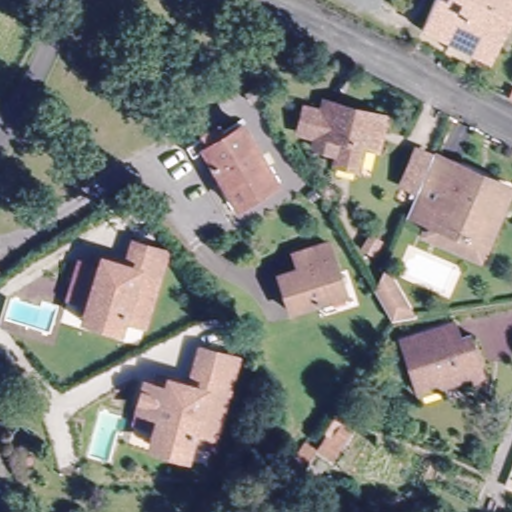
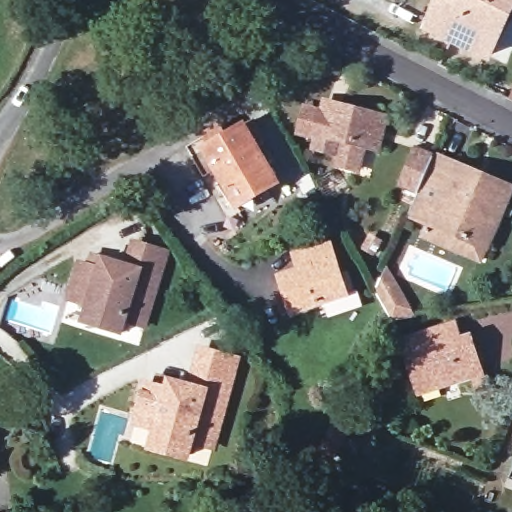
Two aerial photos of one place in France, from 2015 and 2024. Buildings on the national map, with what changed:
unchanged [(488,56),(423,26),(435,0),(479,0),(508,14),(488,56)]
unchanged [(479,0),(512,0),(512,4),(508,14),(479,0)]
unchanged [(512,84),(512,97),(505,94),(510,83),(512,84)]
unchanged [(361,147),(354,172),(332,166),(338,141),(314,136),(313,141),(294,136),(299,111),(333,119),(336,107),(380,118),(377,134),(372,151),(361,147)]
unchanged [(205,149),(246,126),(277,183),(237,205),(205,149)]
unchanged [(409,214),(421,186),(406,178),(419,150),(434,156),(454,166),(456,163),(512,187),(512,189),(488,248),(482,261),(424,237),(430,223),(409,214)]
unchanged [(76,286),(84,262),(104,268),(107,258),(133,266),(140,242),(171,252),(149,326),(128,319),(124,332),(88,321),(93,306),(72,299),(76,286)]
unchanged [(339,300),(309,311),(287,319),(275,284),(296,276),(290,262),(322,250),(325,259),(339,300)]
unchanged [(375,293),(385,270),(412,318),(392,321),(375,293)]
unchanged [(1,273),(0,273),(0,272),(1,273)]
unchanged [(399,335),(438,323),(448,320),(453,335),(465,332),(480,380),(472,382),(469,372),(436,382),(417,388),(412,374),(399,335)]
unchanged [(242,357),(221,447),(195,442),(188,461),(144,454),(151,429),(134,426),(147,371),(192,382),(201,345),(242,357)]

